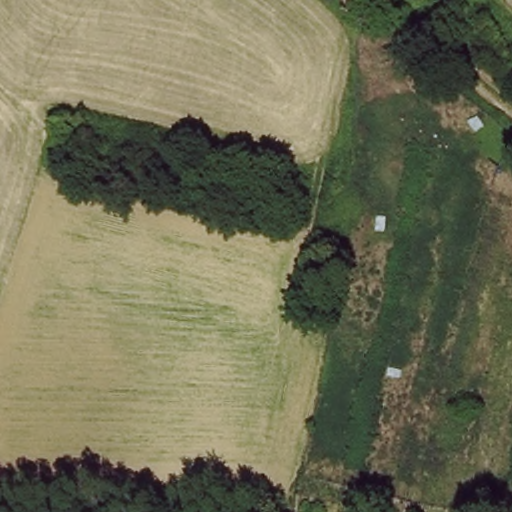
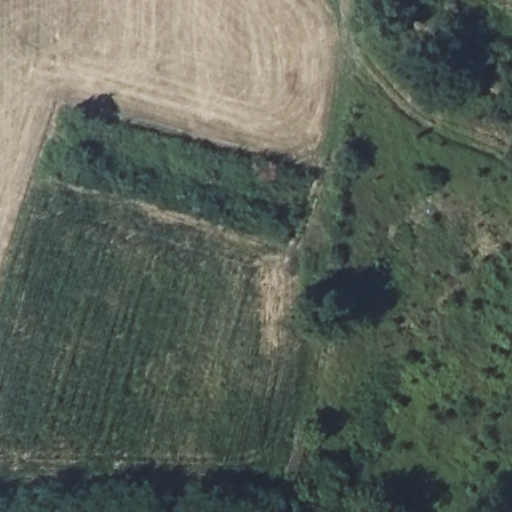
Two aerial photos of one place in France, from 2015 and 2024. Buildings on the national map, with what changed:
[]

